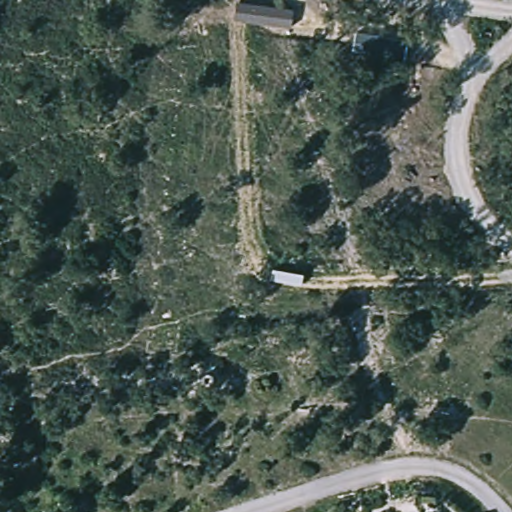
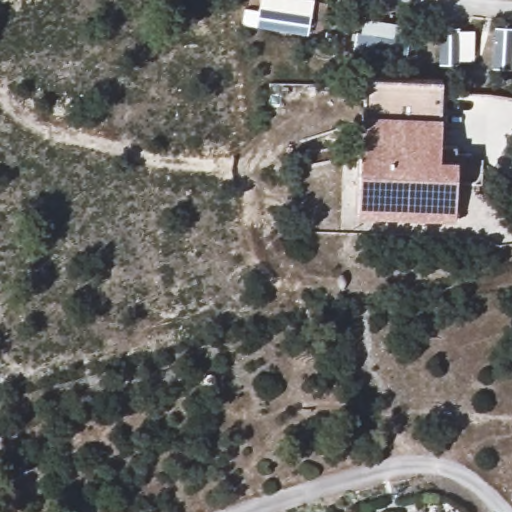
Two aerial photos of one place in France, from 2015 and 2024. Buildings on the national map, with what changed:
new [(358,221),(361,115),(363,78),(442,80),(441,117),(441,161),(458,161),(454,223),(358,221)]

